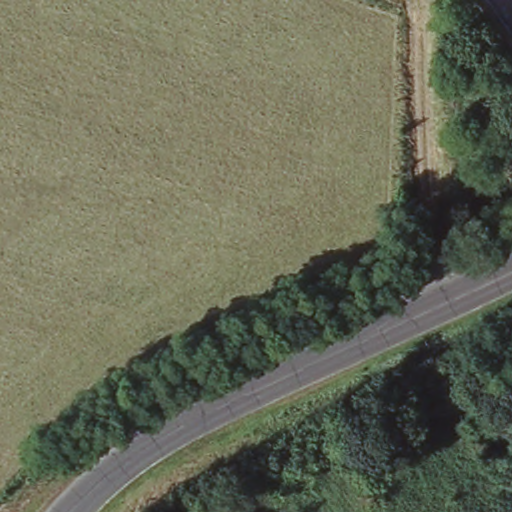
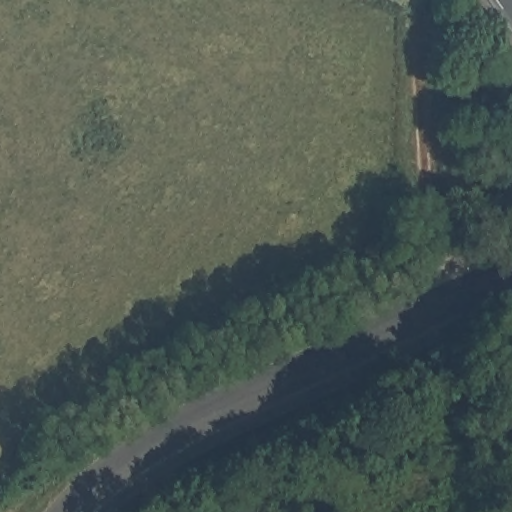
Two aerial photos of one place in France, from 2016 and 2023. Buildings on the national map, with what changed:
[]

